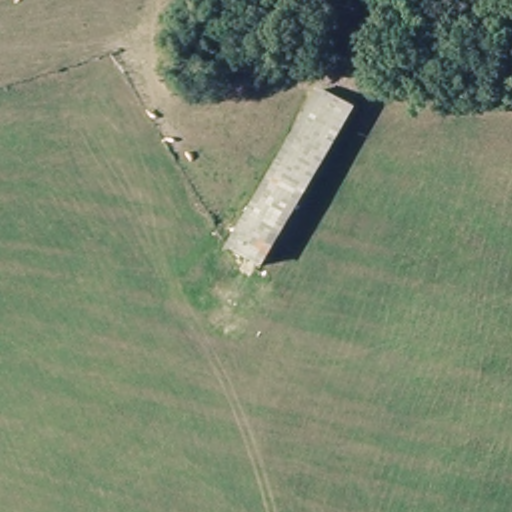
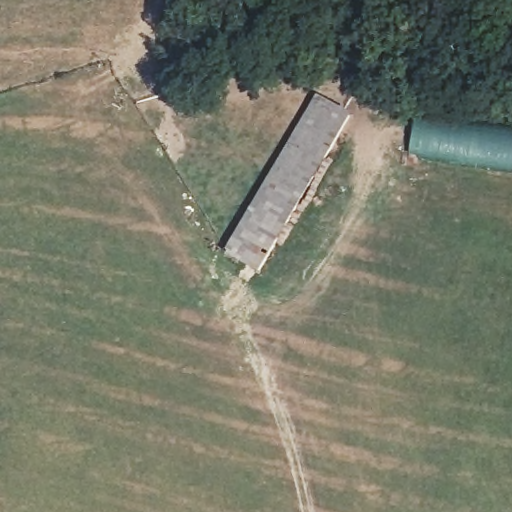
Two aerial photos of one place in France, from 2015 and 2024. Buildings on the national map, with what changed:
unchanged [(352,119),(259,277),(222,254),(319,100),(352,119)]
new [(501,166),(413,152),(417,126),(460,132),(461,127),(512,134),(512,156),(502,155),(501,166)]

